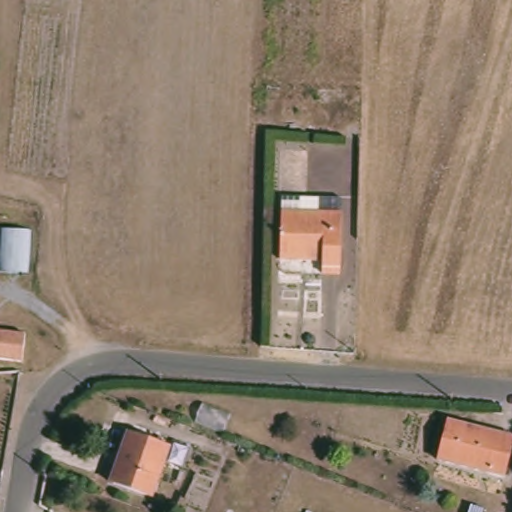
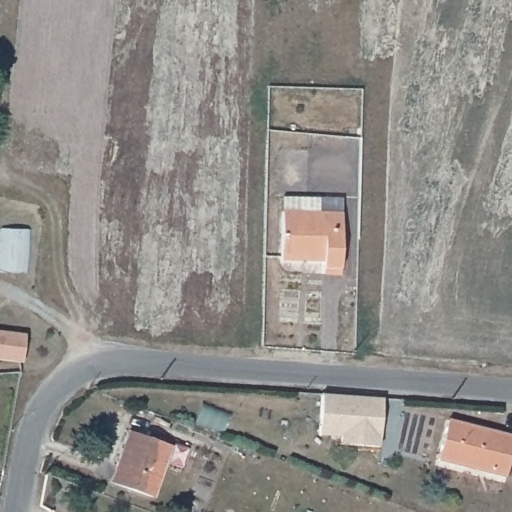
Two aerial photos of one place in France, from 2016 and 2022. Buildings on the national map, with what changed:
unchanged [(338,198),(335,274),(316,273),(316,261),(275,260),(278,196),(338,198)]
new [(26,229),(25,272),(0,272),(0,229),(26,229)]
unchanged [(20,367),(0,365),(0,336),(24,339),(20,367)]
new [(321,393),(382,397),(378,446),(340,444),(341,436),(318,435),(321,393)]
unchanged [(432,459),(442,418),(509,435),(499,476),(482,472),(462,466),(432,459)]
unchanged [(111,484),(128,436),(168,451),(151,499),(111,484)]

